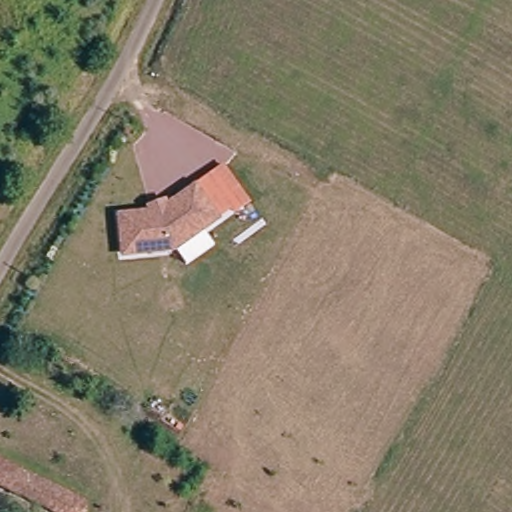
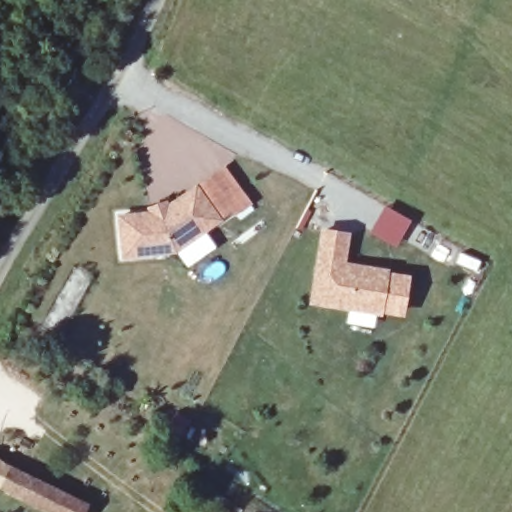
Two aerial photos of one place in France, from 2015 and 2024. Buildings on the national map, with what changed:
unchanged [(251,201),(177,254),(125,261),(120,216),(167,209),(222,166),(251,201)]
new [(382,314),(309,304),(320,230),(349,232),(345,263),(388,270),(382,314)]
unchanged [(90,501),(84,512),(55,512),(0,486),(0,455),(90,501)]

